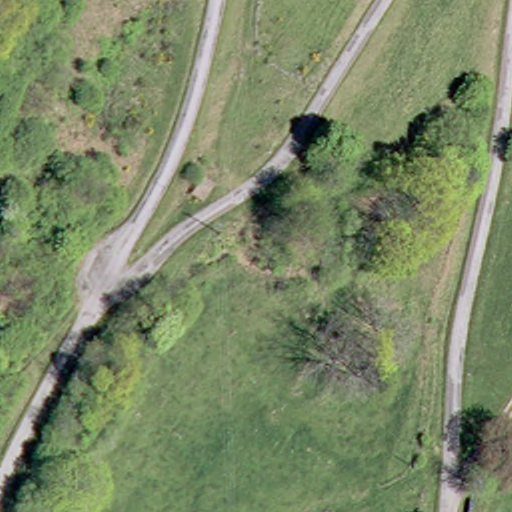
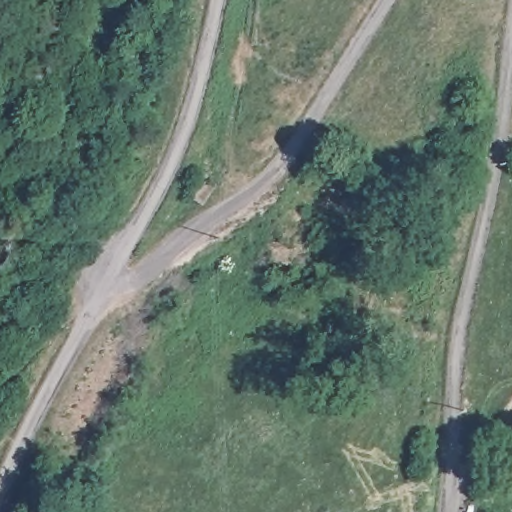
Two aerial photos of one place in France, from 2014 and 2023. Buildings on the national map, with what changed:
unchanged [(197,170),(188,186),(177,180),(187,164),(197,170)]

